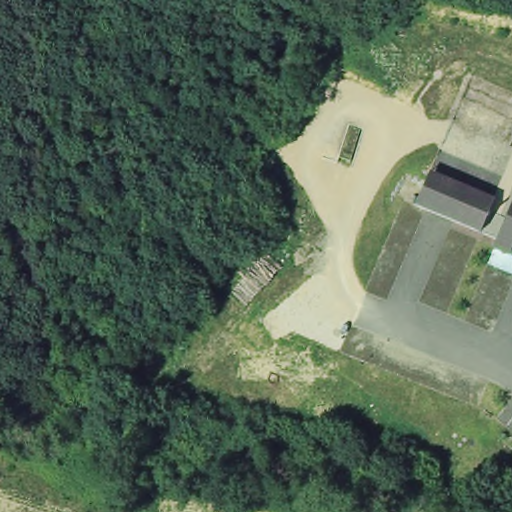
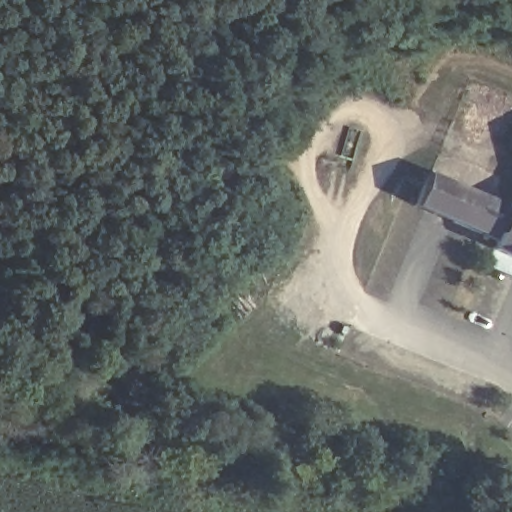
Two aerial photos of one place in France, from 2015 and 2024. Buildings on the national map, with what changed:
unchanged [(427,173),(490,198),(486,210),(504,217),(512,199),(512,256),(492,248),(496,238),(478,231),(414,205),(427,173)]

